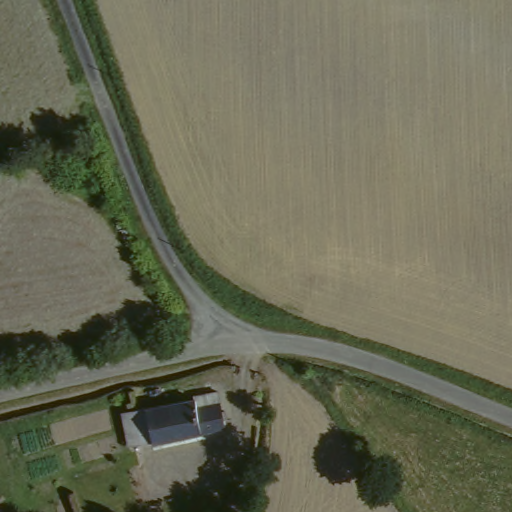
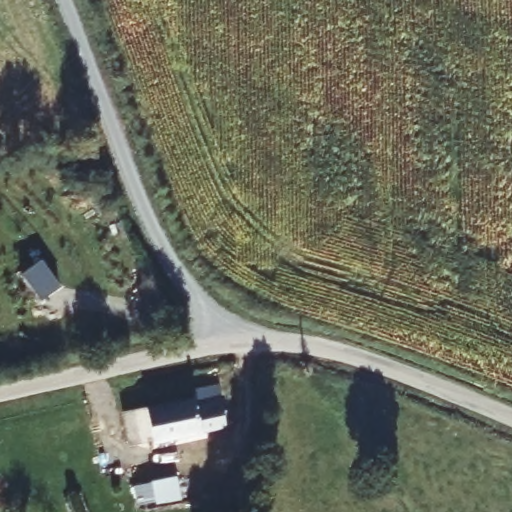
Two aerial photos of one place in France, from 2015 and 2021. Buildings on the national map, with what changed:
new [(61,286),(40,300),(20,273),(41,260),(61,286)]
unchanged [(117,420),(148,410),(171,405),(223,390),(230,418),(156,438),(123,446),(117,420)]

